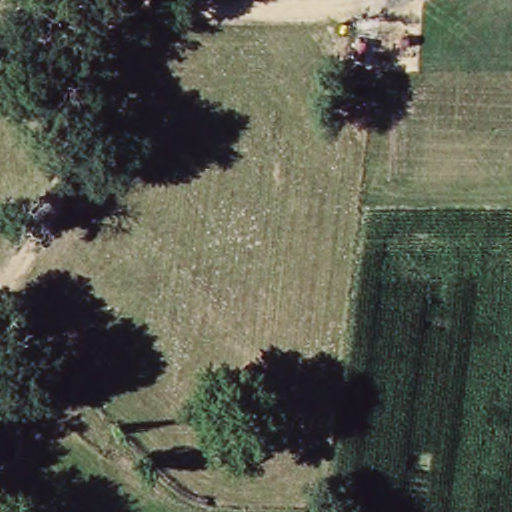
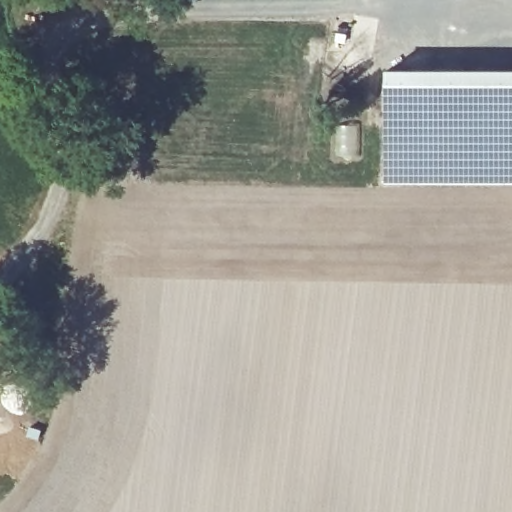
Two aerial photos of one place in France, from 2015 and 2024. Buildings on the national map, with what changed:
new [(512,69),(512,185),(383,185),(384,70),(512,69)]

